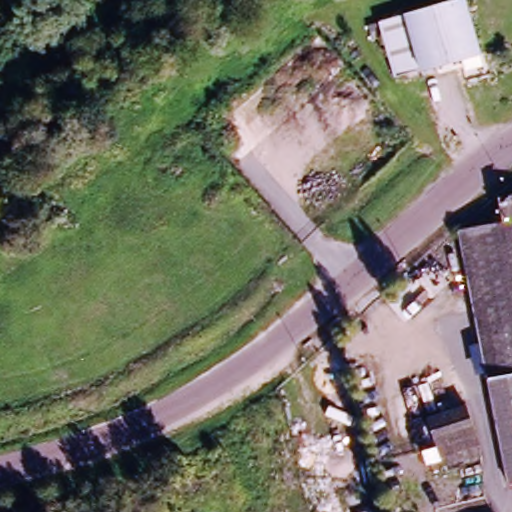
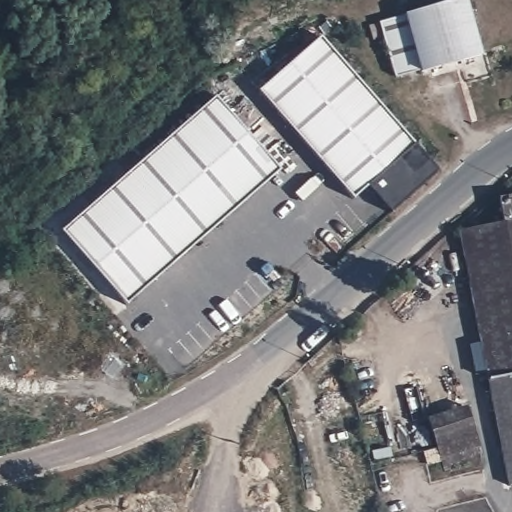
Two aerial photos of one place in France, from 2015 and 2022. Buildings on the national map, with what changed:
unchanged [(443,0),(467,0),(481,50),(423,66),(422,65),(396,72),(381,17),(443,0)]
new [(319,32),(437,166),(390,209),(366,181),(351,195),(257,87),(319,32)]
new [(216,93),(281,166),(128,301),(63,228),(216,93)]
unchanged [(457,239),(495,230),(492,204),(512,199),(512,379),(487,385),(457,239)]
unchanged [(487,385),(512,379),(512,488),(507,489),(487,385)]
unchanged [(469,408),(482,465),(443,474),(430,415),(469,408)]

